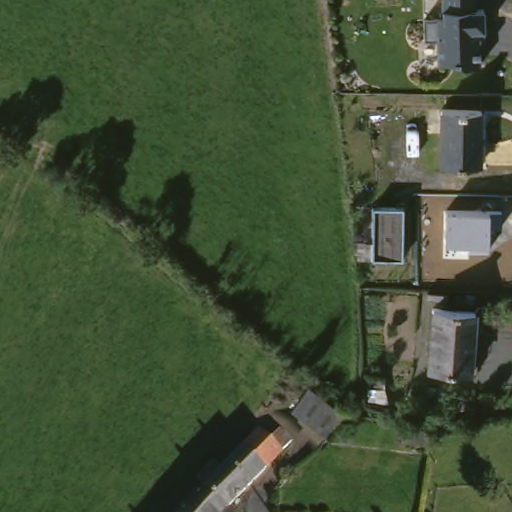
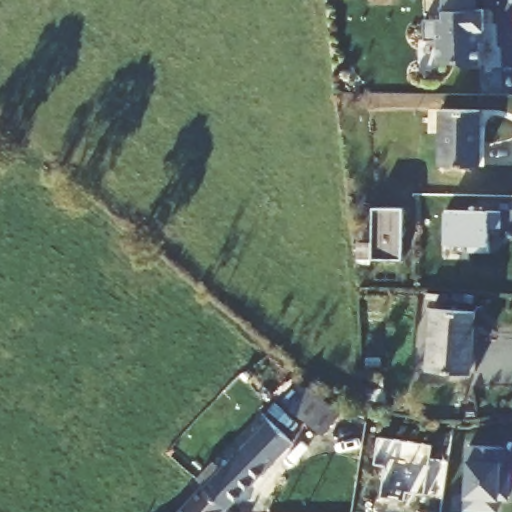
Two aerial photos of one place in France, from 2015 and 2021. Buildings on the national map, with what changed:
unchanged [(432,60),(432,0),(484,0),(481,62),(432,60)]
unchanged [(484,114),(483,170),(443,169),(444,112),(484,114)]
unchanged [(408,212),(406,262),(377,260),(378,210),(408,212)]
unchanged [(445,245),(445,211),(501,212),(501,230),(488,231),(488,245),(445,245)]
unchanged [(478,310),(474,371),(432,369),(436,307),(478,310)]
unchanged [(321,433),(292,410),(301,398),(286,386),(295,376),(309,388),(339,412),(321,433)]
unchanged [(201,486),(218,468),(224,475),(262,435),(275,446),(284,436),(295,447),(234,512),(230,512),(206,490),(201,486)]
new [(468,445),(503,448),(501,465),(498,464),(498,471),(507,472),(505,500),(495,499),(494,511),(462,508),(468,445)]
unchanged [(230,512),(186,512),(206,490),(230,512)]

